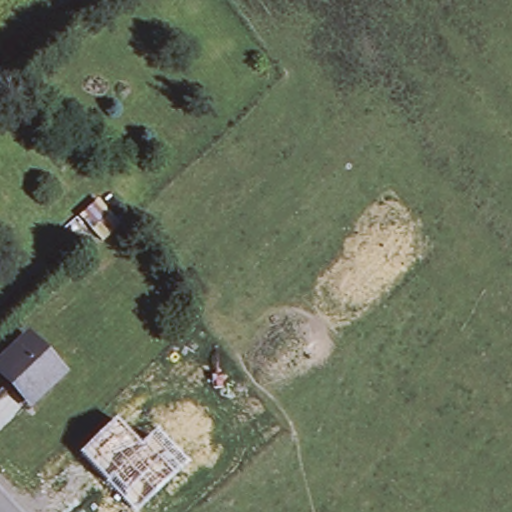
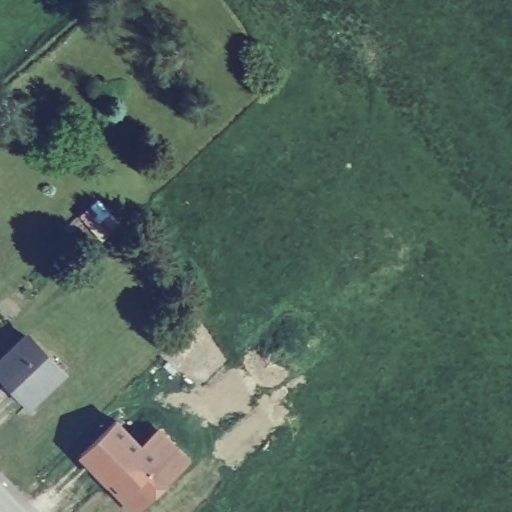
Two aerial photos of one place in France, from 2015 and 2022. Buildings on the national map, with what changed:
unchanged [(25,404),(0,371),(0,363),(32,339),(60,373),(63,377),(25,404)]
unchanged [(188,463),(135,512),(109,480),(107,482),(80,454),(116,418),(140,444),(156,429),(188,463)]

